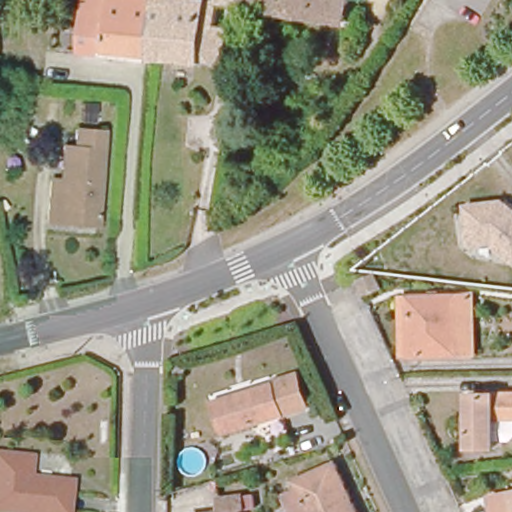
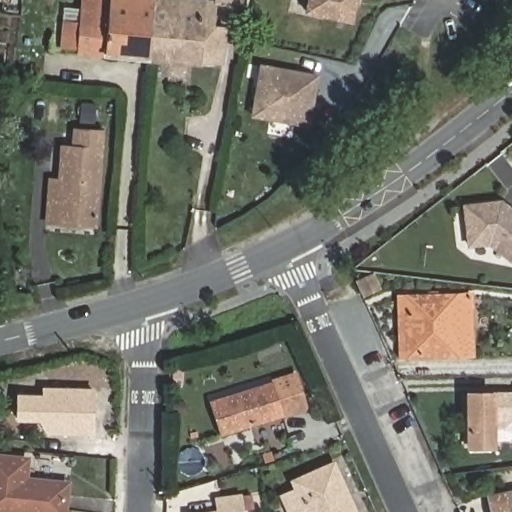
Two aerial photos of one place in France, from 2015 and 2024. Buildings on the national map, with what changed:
unchanged [(131,0),(154,2),(214,8),(214,9),(210,70),(149,64),(80,57),(86,0),(131,0)]
unchanged [(214,8),(215,0),(247,0),(245,14),(214,9),(214,8)]
demolished [(245,14),(247,0),(353,0),(344,29),(245,14)]
new [(306,13),(308,0),(360,0),(355,24),(306,13)]
new [(252,118),(261,64),(321,74),(311,128),(252,118)]
unchanged [(103,133),(95,226),(59,223),(64,148),(74,149),(76,131),(103,133)]
unchanged [(503,203),(512,210),(512,260),(491,244),(472,247),(466,208),(503,203)]
unchanged [(374,284),(380,299),(366,305),(359,289),(374,284)]
unchanged [(421,365),(419,308),(472,307),(473,364),(421,365)]
unchanged [(402,366),(401,308),(419,308),(421,365),(402,366)]
unchanged [(214,399),(276,379),(279,389),(294,384),(301,408),(224,432),(214,399)]
new [(41,394),(42,387),(94,388),(94,436),(46,434),(39,422),(15,421),(17,394),(41,394)]
unchanged [(499,418),(499,448),(474,448),(474,394),(512,394),(512,418),(499,418)]
unchanged [(0,463),(28,466),(26,484),(68,489),(65,512),(0,512),(0,463)]
unchanged [(289,495),(302,489),(298,480),(334,464),(356,512),(296,512),(289,495)]
unchanged [(217,511),(215,496),(244,493),(246,506),(238,507),(239,512),(202,512),(217,511)]
unchanged [(494,498),(512,494),(512,512),(497,512),(494,498)]

